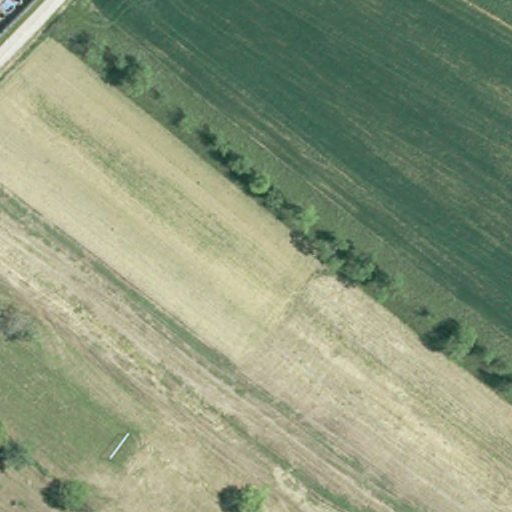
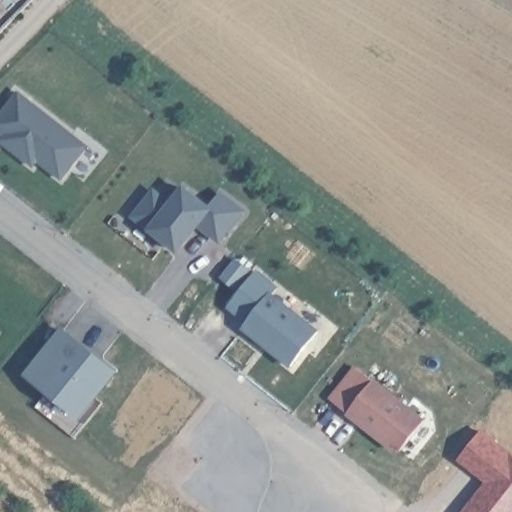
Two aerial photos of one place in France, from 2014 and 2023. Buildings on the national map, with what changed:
new [(61,181),(40,163),(34,169),(0,141),(0,139),(2,136),(0,134),(0,113),(19,90),(89,145),(61,181)]
new [(131,216),(154,186),(170,202),(184,185),(210,205),(221,191),(245,211),(220,244),(197,230),(178,255),(131,216)]
new [(280,287),(275,293),(317,329),(289,366),(242,330),(245,325),(225,308),(257,269),(280,287)]
new [(101,360),(97,365),(114,378),(80,419),(27,376),(63,330),(101,360)]
new [(426,418),(400,451),(394,453),(346,415),(375,378),(426,418)]

